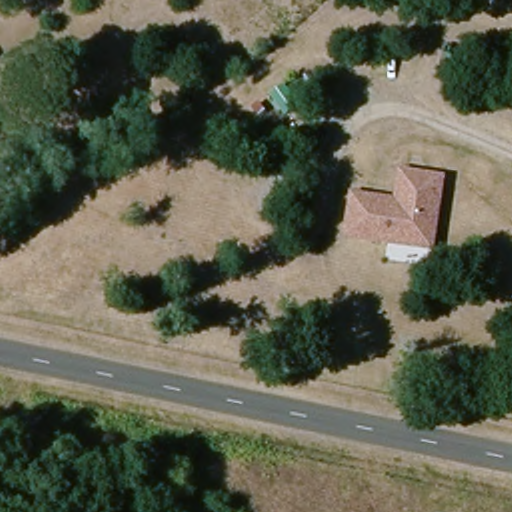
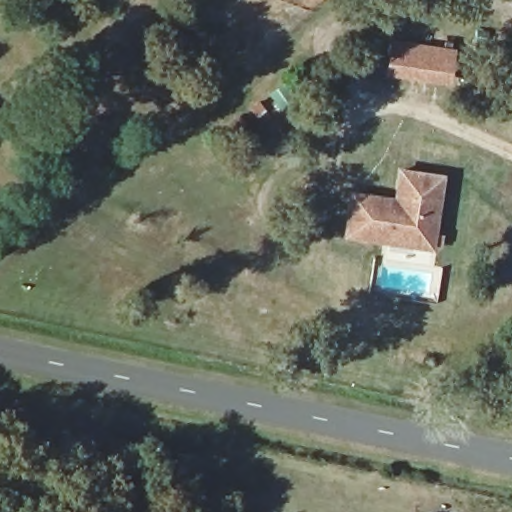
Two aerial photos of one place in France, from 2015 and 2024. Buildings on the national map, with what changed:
new [(458,49),(455,85),(385,75),(390,39),(458,49)]
unchanged [(355,195),(372,196),(400,199),(404,170),(445,176),(436,248),(350,237),(353,209),(355,195)]

